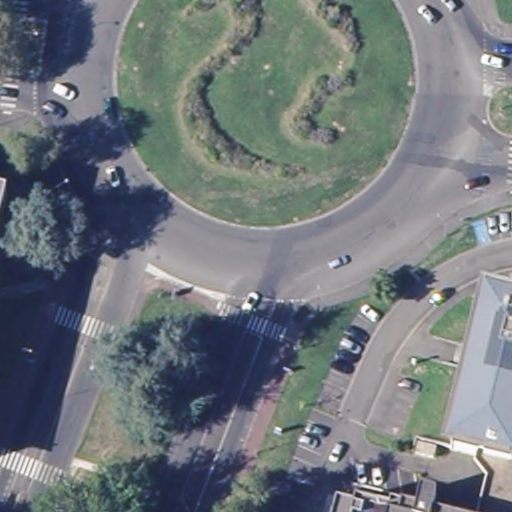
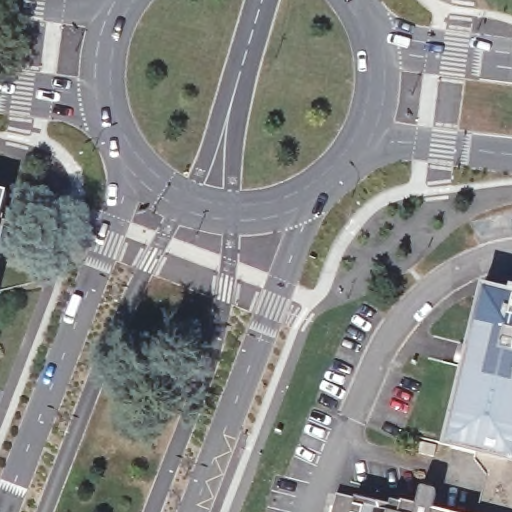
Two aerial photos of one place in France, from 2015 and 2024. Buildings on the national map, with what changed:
unchanged [(0,203),(0,193),(2,194),(0,203)]
unchanged [(512,305),(512,458),(449,444),(485,299),(512,305)]
unchanged [(345,497),(381,507),(391,509),(392,505),(395,504),(418,510),(422,491),(441,495),(448,497),(445,512),(341,512),(341,509),(345,497)]

